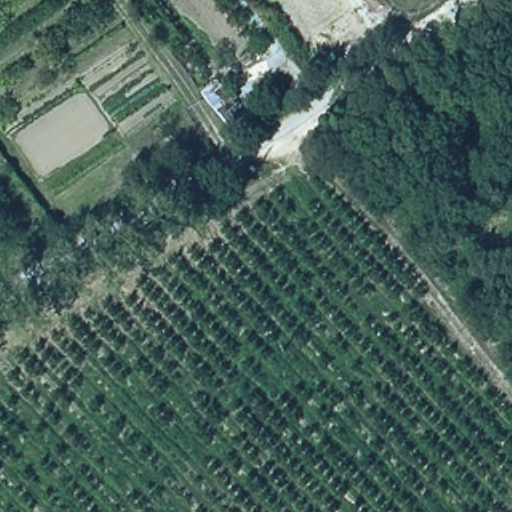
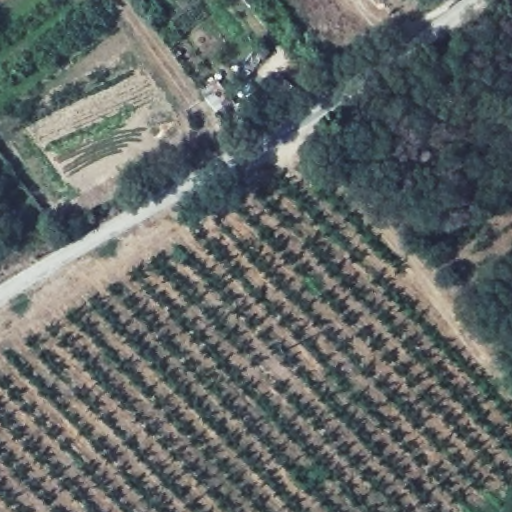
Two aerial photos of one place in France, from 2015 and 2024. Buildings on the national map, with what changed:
unchanged [(221,78),(235,99),(215,119),(200,96),(221,78)]

